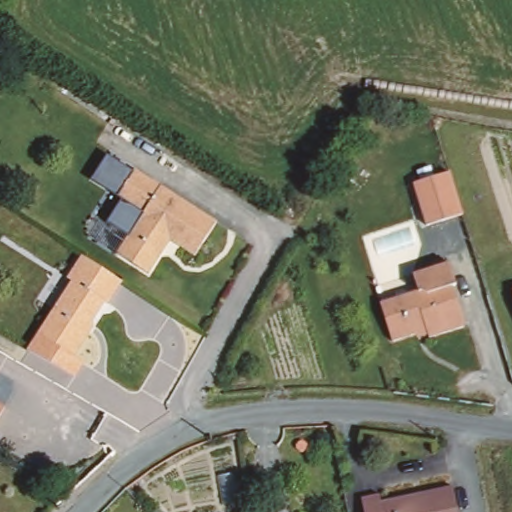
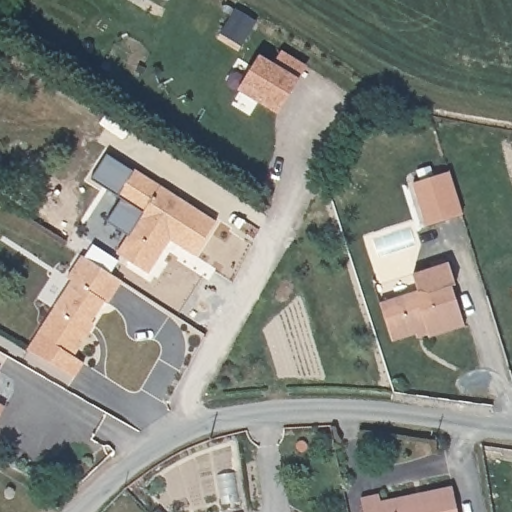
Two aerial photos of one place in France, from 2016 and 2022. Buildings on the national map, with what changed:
new [(272,67),(281,54),(302,67),(295,80),(276,111),(240,89),(258,58),(272,67)]
unchanged [(216,222),(195,256),(164,236),(157,246),(164,250),(148,274),(117,254),(142,213),(117,197),(134,170),(216,222)]
unchanged [(462,215),(426,226),(412,184),(448,172),(462,215)]
unchanged [(79,372),(59,359),(34,343),(42,330),(79,274),(74,271),(87,251),(127,277),(112,299),(109,297),(91,325),(94,327),(78,352),(88,358),(79,372)]
unchanged [(465,326),(428,338),(426,331),(392,342),(379,304),(417,291),(412,275),(432,268),(431,263),(443,259),(445,264),(448,263),(456,285),(452,286),(465,326)]
unchanged [(0,415),(0,404),(5,407),(0,415)]
unchanged [(379,494),(381,502),(452,487),(458,512),(363,512),(361,498),(379,494)]

